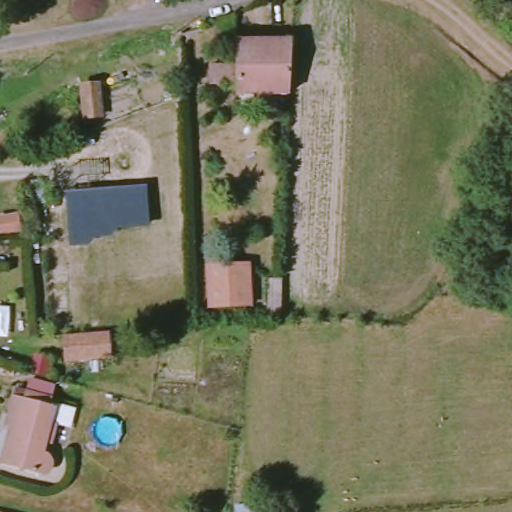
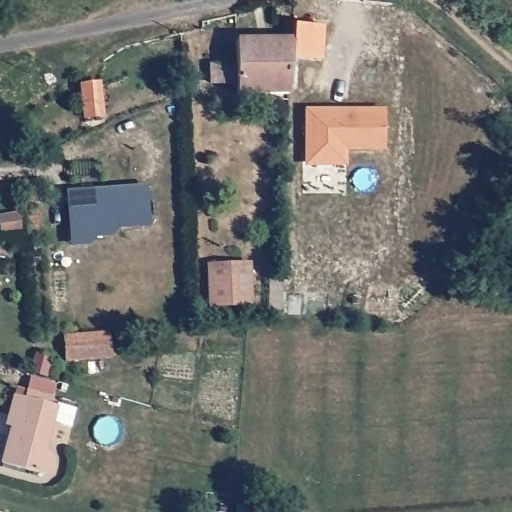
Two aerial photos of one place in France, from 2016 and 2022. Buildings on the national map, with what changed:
unchanged [(286,89),(233,89),(233,79),(206,79),(206,60),(232,61),(232,35),(288,35),(286,89)]
unchanged [(100,84),(103,115),(85,117),(82,86),(100,84)]
new [(346,151),(346,166),(304,166),(305,109),(385,109),(385,149),(346,151)]
unchanged [(0,145),(0,135),(14,126),(17,134),(0,145)]
unchanged [(149,227),(117,229),(112,237),(95,238),(88,247),(69,248),(65,192),(146,185),(149,227)]
unchanged [(250,262),(250,306),(229,307),(209,308),(208,264),(231,263),(250,262)]
unchanged [(282,279),(282,317),(270,315),(271,279),(282,279)]
unchanged [(104,338),(107,363),(61,367),(60,341),(104,338)]
unchanged [(39,453),(44,454),(47,458),(48,462),(48,467),(47,469),(44,472),(39,474),(35,474),(0,465),(0,453),(7,428),(2,426),(10,396),(51,408),(39,453)]

